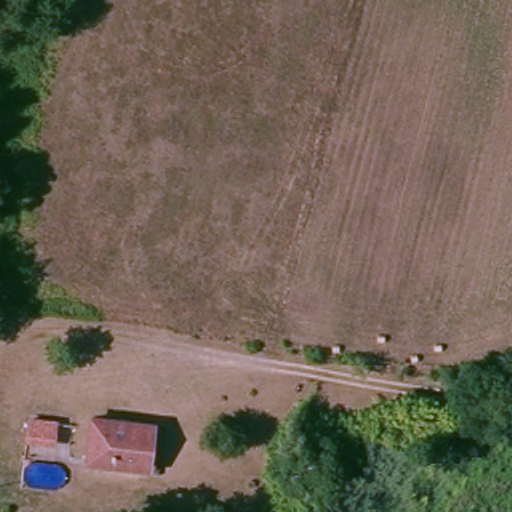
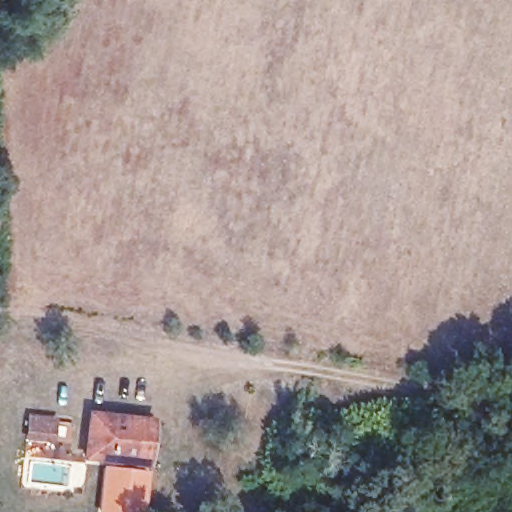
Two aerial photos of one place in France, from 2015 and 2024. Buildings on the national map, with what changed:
unchanged [(55,417),(52,442),(24,437),(26,413),(55,417)]
unchanged [(150,468),(87,460),(91,416),(155,425),(155,432),(150,468)]
new [(150,472),(145,512),(97,512),(103,467),(150,472)]

